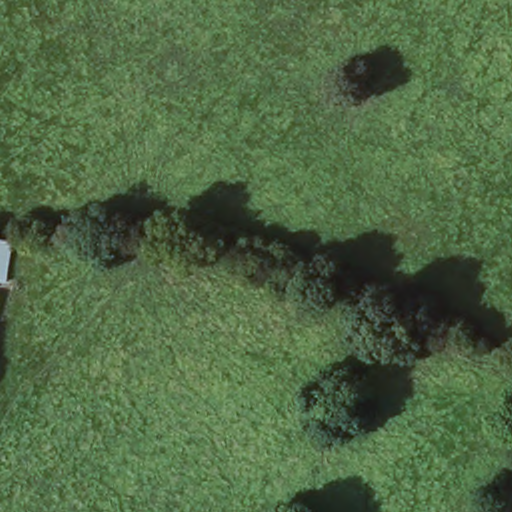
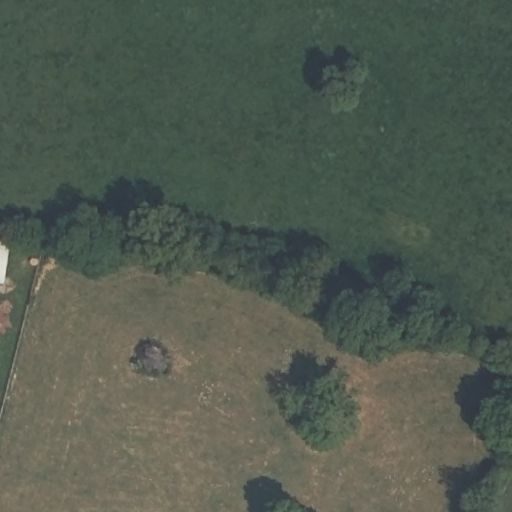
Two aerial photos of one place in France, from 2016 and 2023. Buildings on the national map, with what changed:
unchanged [(8,287),(0,285),(0,243),(14,246),(8,287)]

